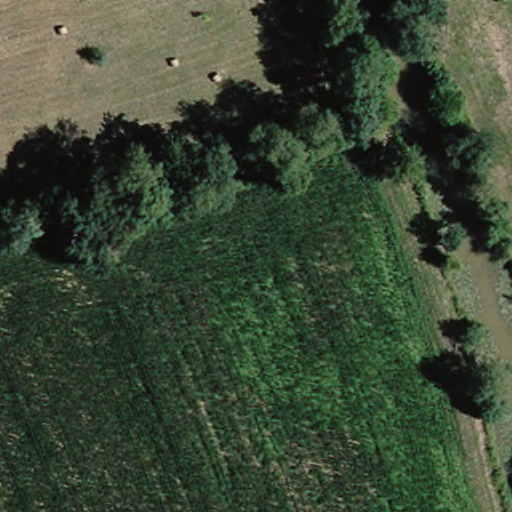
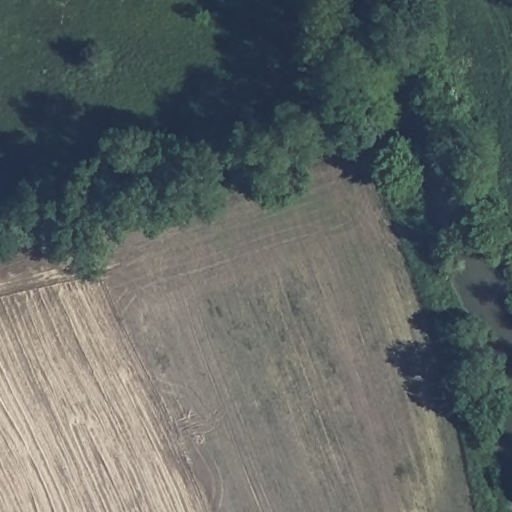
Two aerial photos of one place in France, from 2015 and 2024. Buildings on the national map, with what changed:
[]

